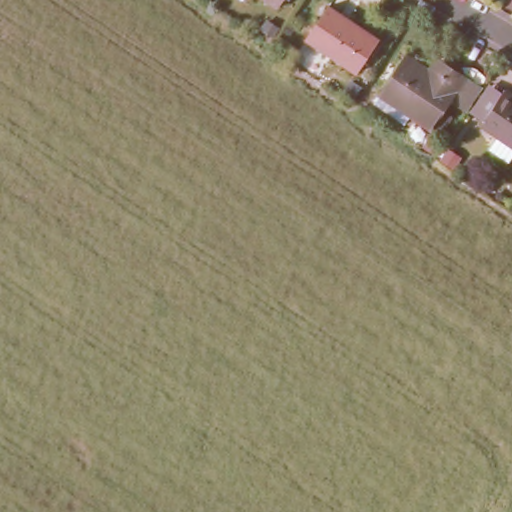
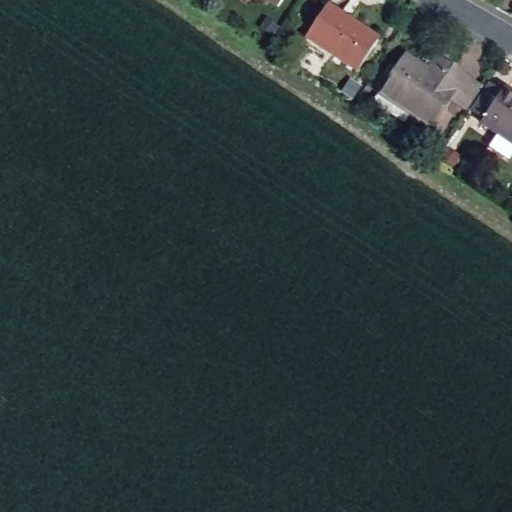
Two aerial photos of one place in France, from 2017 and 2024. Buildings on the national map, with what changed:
unchanged [(273,0),(278,0),(276,2),(273,0)]
unchanged [(322,7),(373,40),(351,71),(300,38),(322,7)]
unchanged [(430,125),(408,111),(403,118),(373,99),(379,90),(378,87),(402,52),(425,66),(435,52),(443,59),(464,72),(480,81),(465,104),(450,94),(442,106),(451,112),(438,130),(430,125)]
unchanged [(481,116),(468,108),(486,81),(500,90),(501,86),(512,93),(512,140),(480,119),(481,116)]
unchanged [(435,136),(445,142),(438,152),(428,145),(435,136)]

